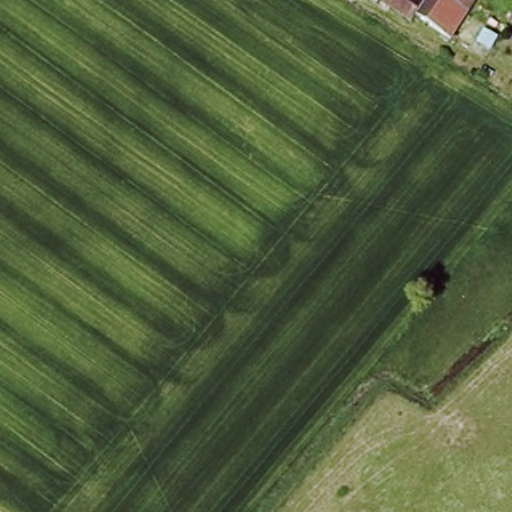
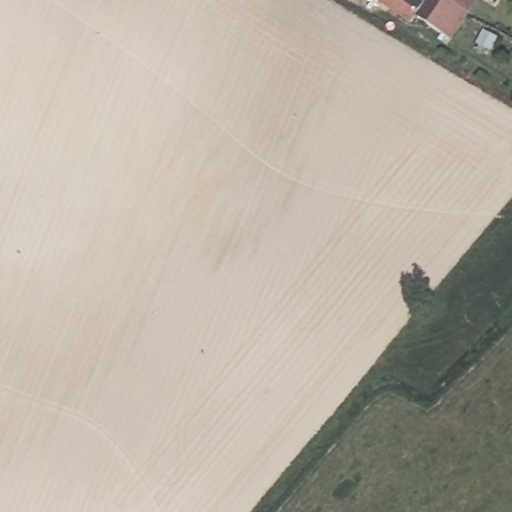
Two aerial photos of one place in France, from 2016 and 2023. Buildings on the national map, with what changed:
unchanged [(471,14),(442,51),(407,24),(404,27),(369,0),(452,0),(456,3),(471,14)]
unchanged [(456,3),(452,0),(480,0),(471,14),(456,3)]

